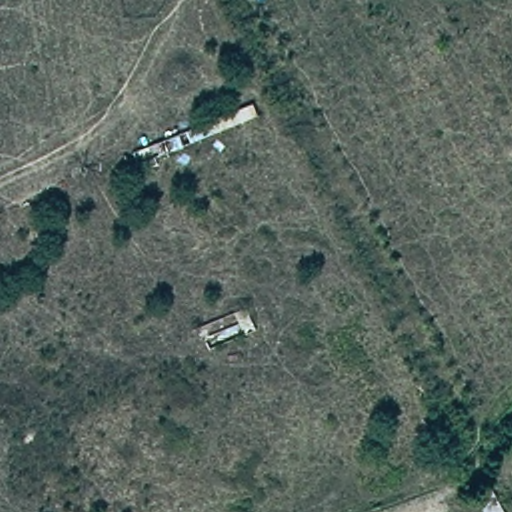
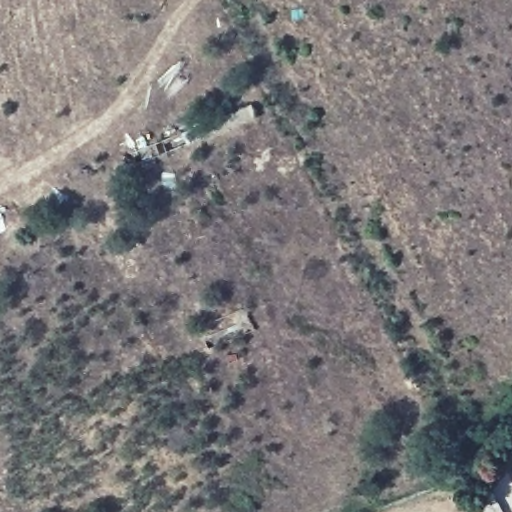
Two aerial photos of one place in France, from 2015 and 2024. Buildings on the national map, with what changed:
unchanged [(490,487),(502,512),(479,512),(472,498),(490,487)]

